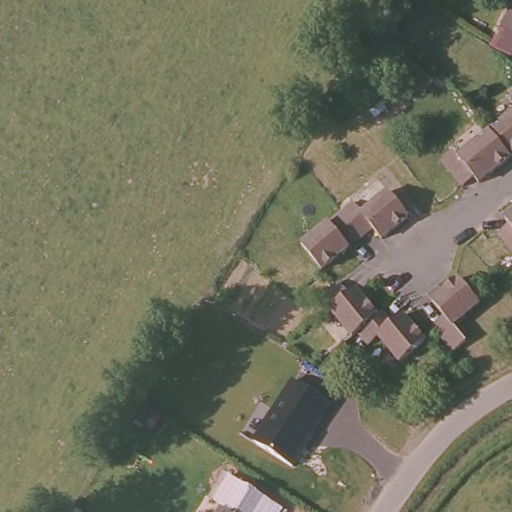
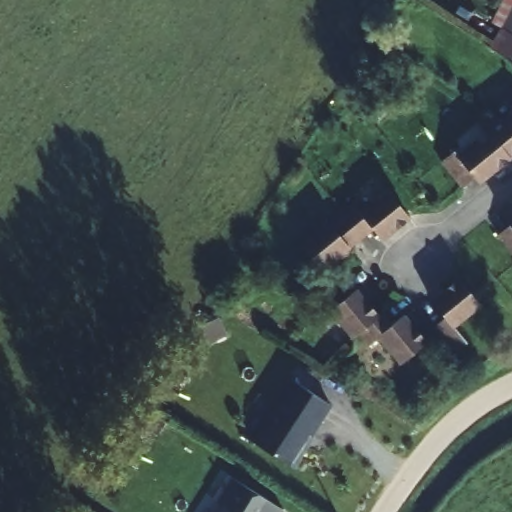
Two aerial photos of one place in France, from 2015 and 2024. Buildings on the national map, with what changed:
unchanged [(512,8),(512,40),(491,30),(504,4),(512,8)]
unchanged [(505,156),(486,132),(512,112),(512,151),(505,156)]
unchanged [(472,182),(468,177),(456,184),(436,159),(448,148),(457,154),(486,132),(505,156),(472,182)]
unchanged [(341,215),(352,205),(361,215),(388,192),(411,219),(384,244),(373,231),(364,240),(341,215)]
unchanged [(325,275),(304,249),(341,215),(364,240),(325,275)]
unchanged [(511,224),(512,223),(512,226),(511,224)]
unchanged [(506,241),(512,237),(512,250),(506,241)]
unchanged [(478,301),(453,323),(467,340),(454,350),(432,324),(443,314),(430,299),(457,275),(478,301)]
unchanged [(428,343),(403,364),(381,337),(371,346),(361,333),(355,338),(333,311),(326,317),(314,304),(338,284),(348,297),(356,289),(379,316),(386,311),(397,323),(407,315),(428,343)]
unchanged [(316,391),(334,407),(293,471),(251,443),(291,383),(316,391)]
unchanged [(282,512),(217,512),(221,507),(213,502),(228,477),(282,512)]

